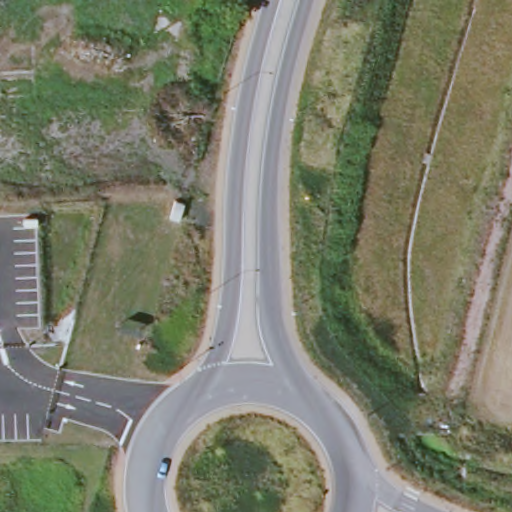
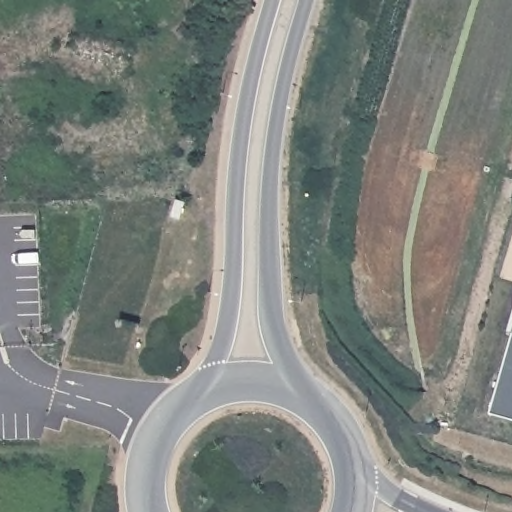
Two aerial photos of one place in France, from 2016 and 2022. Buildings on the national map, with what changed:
new [(489,412),(512,332),(512,419),(489,412)]

